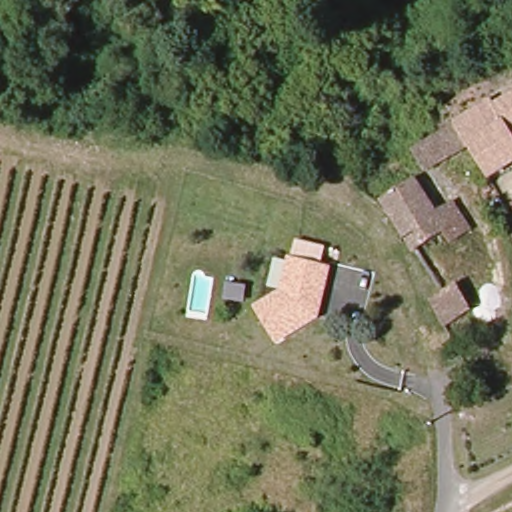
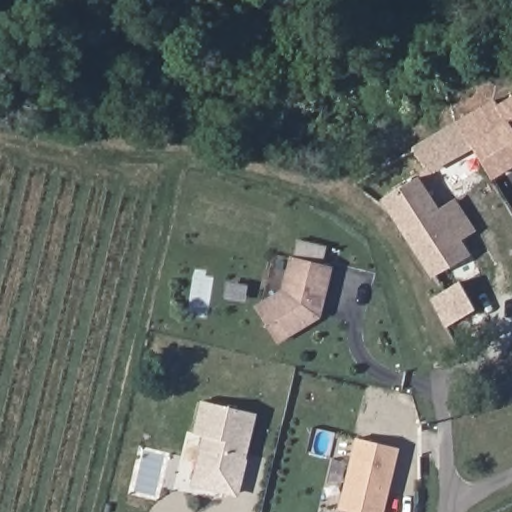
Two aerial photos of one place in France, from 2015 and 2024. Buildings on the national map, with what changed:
unchanged [(458,122),(472,113),(493,99),(495,98),(497,103),(500,107),(512,99),(512,166),(492,179),(471,145),(456,123),(458,122)]
unchanged [(456,123),(471,145),(428,172),(413,150),(456,123)]
unchanged [(386,203),(383,200),(416,180),(435,215),(456,201),(473,231),(451,245),(443,232),(412,251),(386,203)]
unchanged [(319,313),(277,339),(257,305),(283,288),(292,254),(331,263),(319,313)]
unchanged [(430,300),(440,294),(458,284),(473,309),(444,325),(430,300)]
new [(205,486),(197,471),(205,435),(197,433),(203,402),(256,413),(235,493),(205,486)]
new [(381,512),(365,512),(340,506),(356,435),(397,445),(381,512)]

